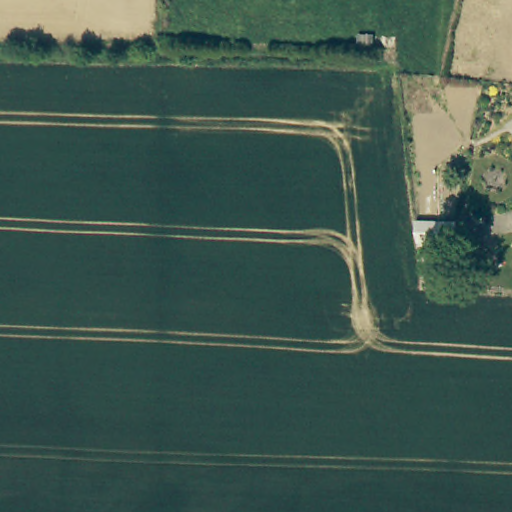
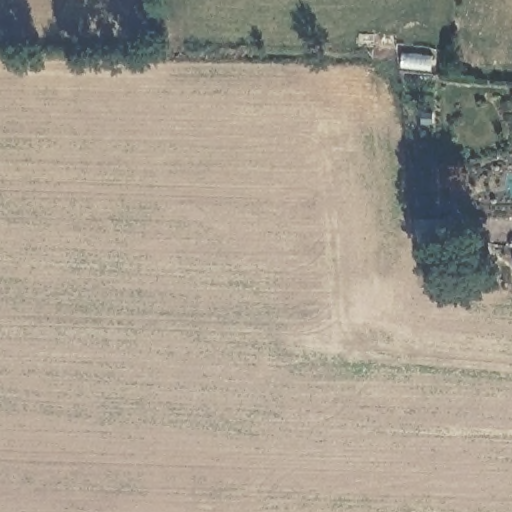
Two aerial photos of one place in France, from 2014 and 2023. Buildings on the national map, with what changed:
unchanged [(356,32),(371,33),(371,46),(355,45),(356,32)]

